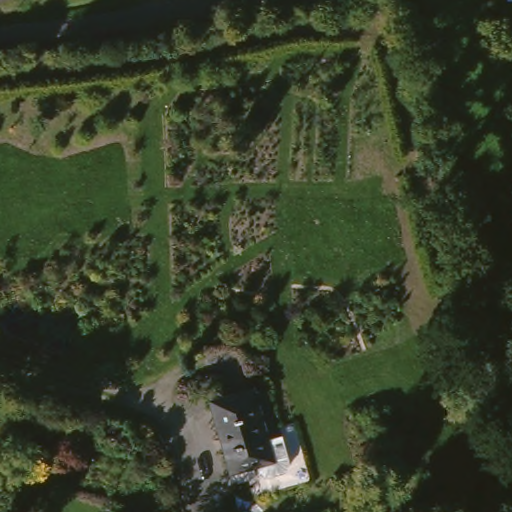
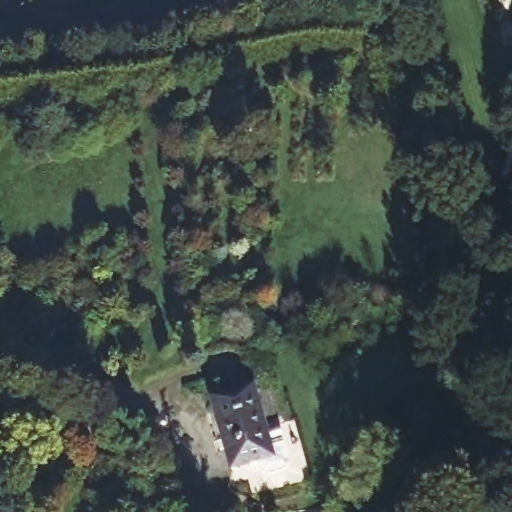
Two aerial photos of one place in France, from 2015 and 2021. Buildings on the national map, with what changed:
unchanged [(297,444),(298,448),(297,453),(293,456),(278,462),(273,462),(269,459),(267,455),(265,451),(239,461),(222,414),(214,394),(232,388),(256,379),(273,426),(288,420),(297,444)]

